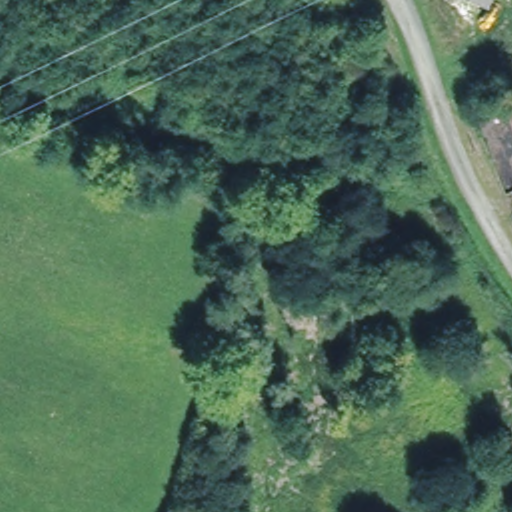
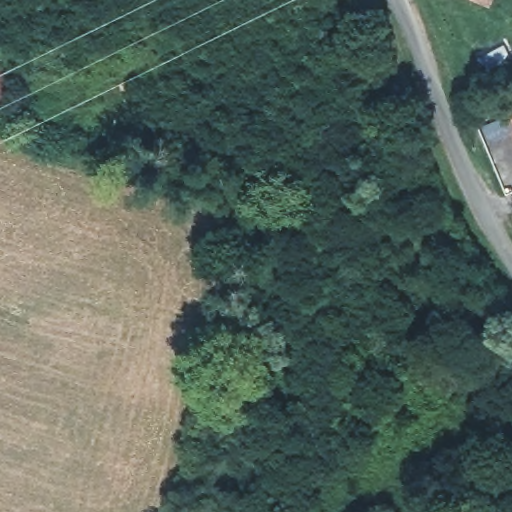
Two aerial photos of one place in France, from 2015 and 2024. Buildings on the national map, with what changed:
unchanged [(476,0),(492,0),(490,5),(476,0)]

